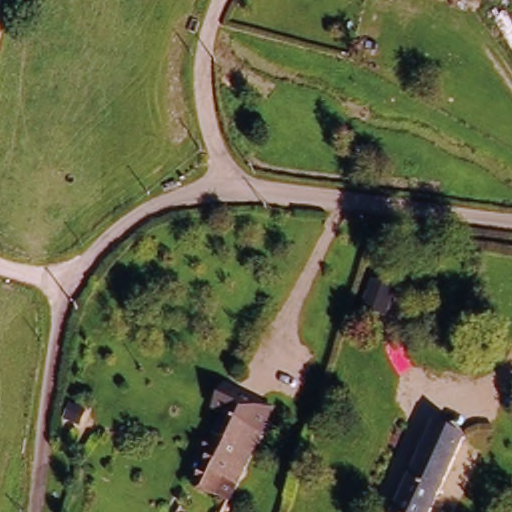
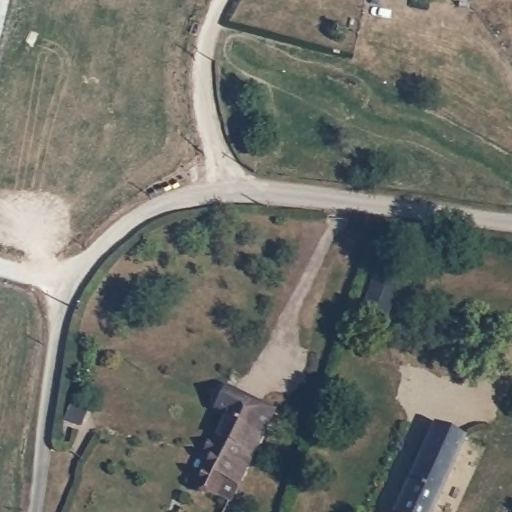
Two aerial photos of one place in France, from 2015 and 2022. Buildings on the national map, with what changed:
unchanged [(191,491),(217,437),(206,431),(213,417),(217,407),(264,431),(260,439),(254,449),(253,454),(226,508),(191,491)]
unchanged [(471,437),(437,512),(401,512),(442,424),(471,437)]

